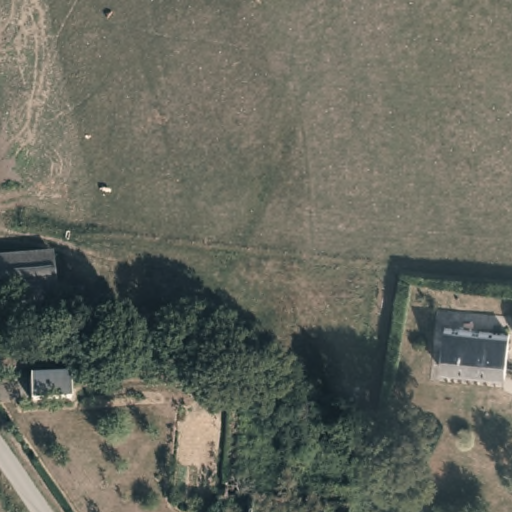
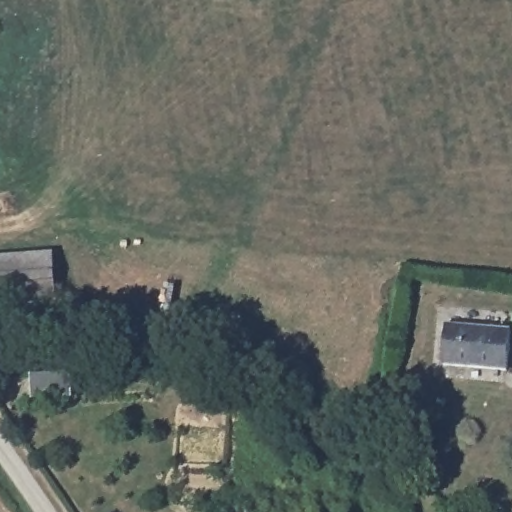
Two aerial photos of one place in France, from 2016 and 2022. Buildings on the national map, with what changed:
unchanged [(0,304),(0,256),(53,252),(56,301),(0,304)]
unchanged [(507,370),(442,364),(446,324),(510,330),(507,370)]
unchanged [(80,402),(39,401),(40,378),(80,378),(80,402)]

